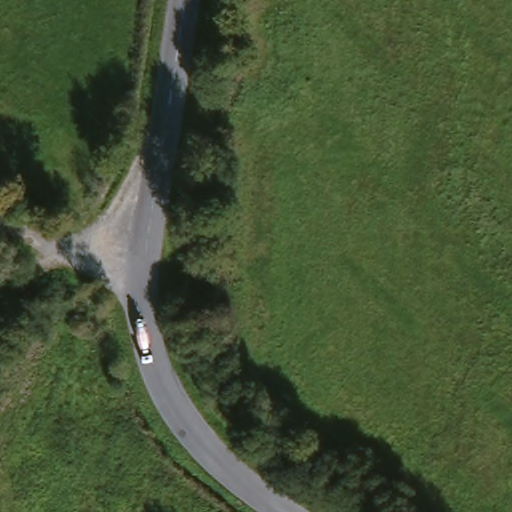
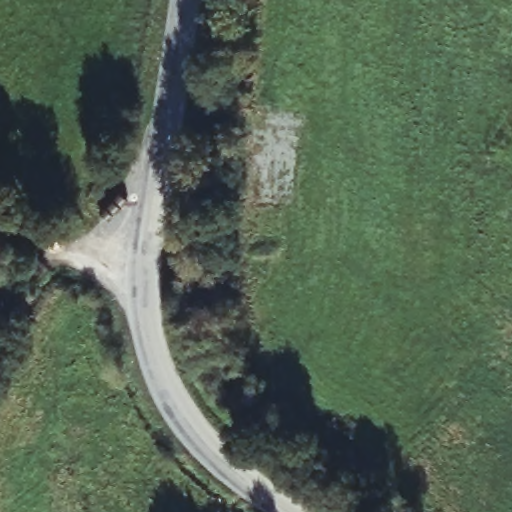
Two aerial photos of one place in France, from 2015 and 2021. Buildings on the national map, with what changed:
[]

